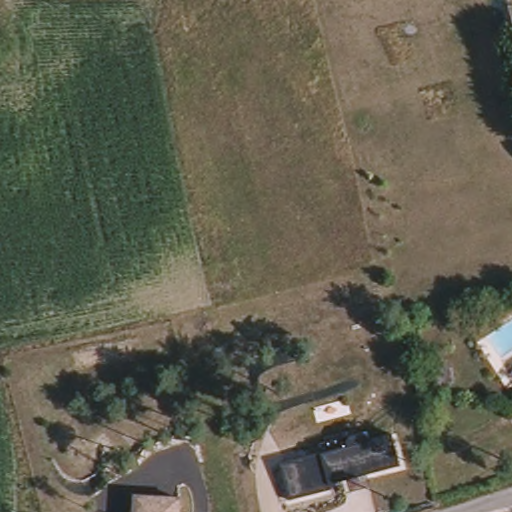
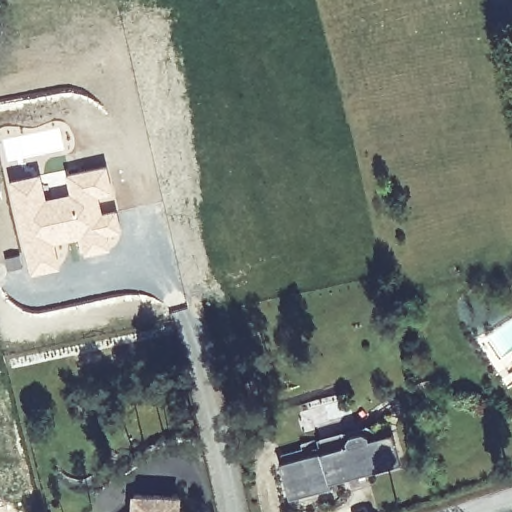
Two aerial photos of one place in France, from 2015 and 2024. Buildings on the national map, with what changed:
new [(22,254),(9,178),(40,171),(47,197),(69,191),(65,172),(107,163),(116,200),(102,203),(105,210),(116,208),(121,228),(119,239),(112,249),(101,253),(80,258),(76,242),(67,244),(67,253),(61,270),(61,271),(27,278),(25,268),(6,273),(2,259),(22,254)]
unchanged [(332,477),(334,483),(292,492),(283,455),(325,446),(322,437),(372,426),(373,435),(396,430),(403,461),(332,477)]
unchanged [(135,512),(136,500),(180,503),(179,512),(135,512)]

